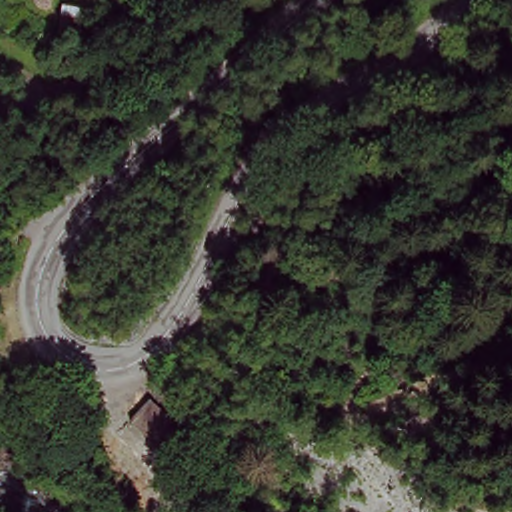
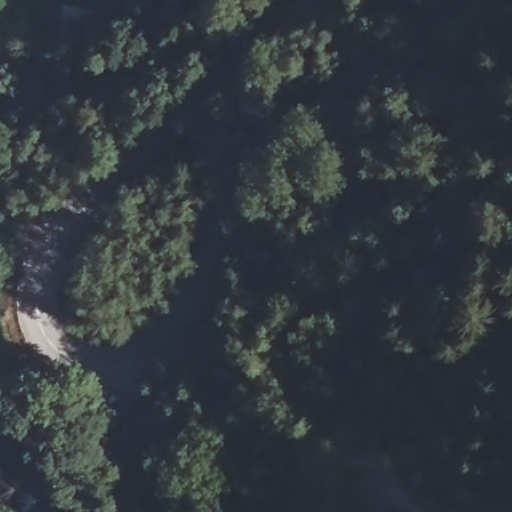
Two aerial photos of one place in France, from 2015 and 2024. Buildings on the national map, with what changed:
unchanged [(197,435),(178,449),(147,407),(164,395),(197,435)]

